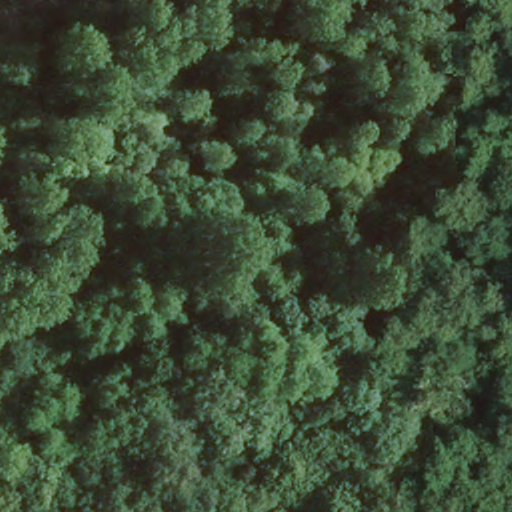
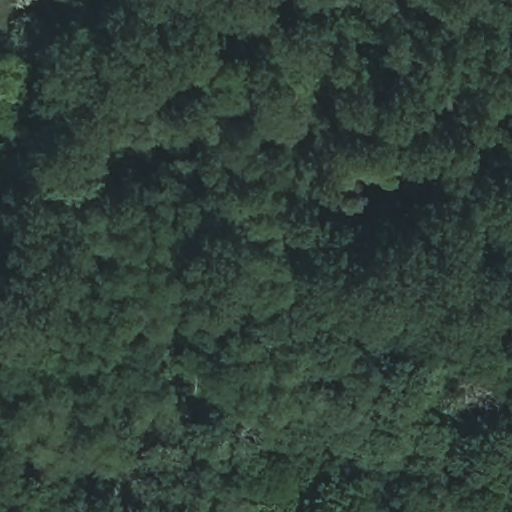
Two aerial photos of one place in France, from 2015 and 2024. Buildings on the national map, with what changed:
[]

